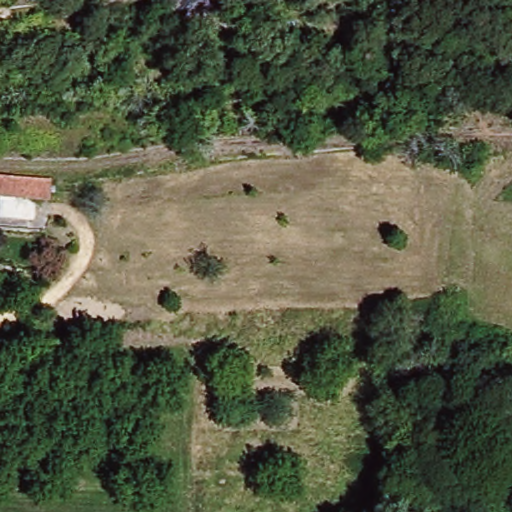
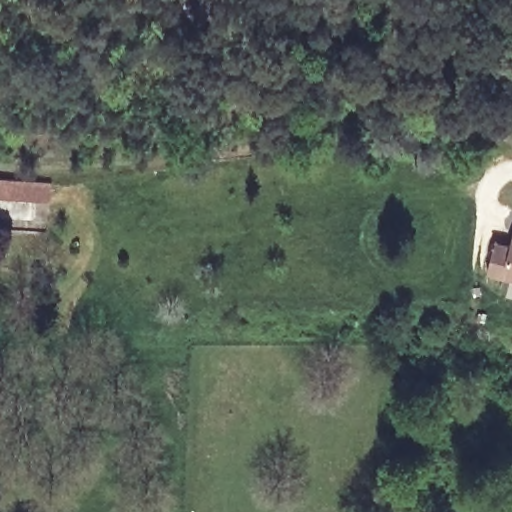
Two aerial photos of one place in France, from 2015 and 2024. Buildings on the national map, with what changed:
unchanged [(51,201),(0,198),(0,179),(10,180),(53,181),(53,187),(51,201)]
new [(489,272),(496,241),(511,244),(512,236),(512,277),(489,272)]

